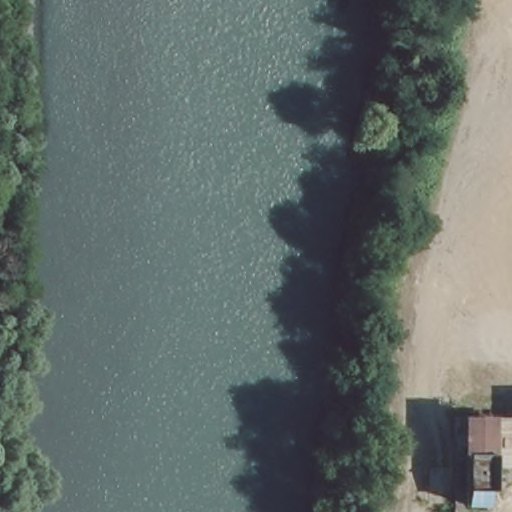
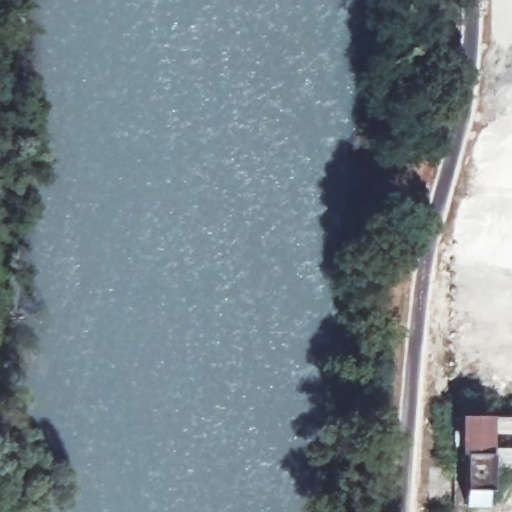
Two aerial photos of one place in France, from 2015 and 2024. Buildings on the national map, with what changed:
unchanged [(479,510),(464,510),(465,423),(512,425),(512,475),(481,475),(479,510)]

